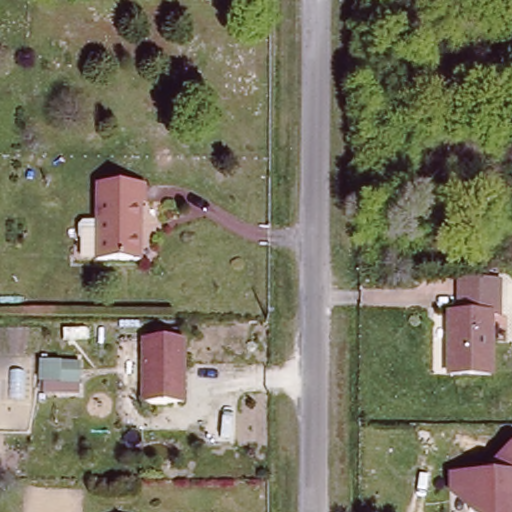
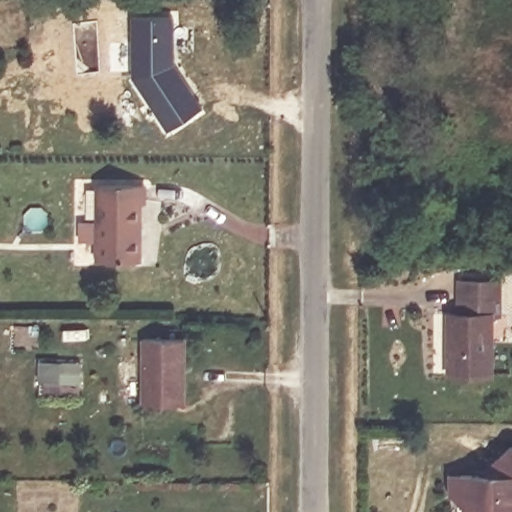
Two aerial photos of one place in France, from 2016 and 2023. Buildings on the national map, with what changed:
new [(131,77),(130,16),(173,18),(172,65),(202,108),(167,131),(131,77)]
new [(71,20),(97,20),(100,76),(74,76),(71,20)]
unchanged [(79,238),(80,223),(85,218),(97,218),(97,183),(145,183),(145,200),(138,200),(140,256),(97,257),(97,243),(85,243),(79,238)]
unchanged [(504,277),(503,311),(495,311),(495,370),(455,370),(455,311),(467,311),(467,277),(504,277)]
unchanged [(140,338),(183,340),(184,404),(139,404),(140,338)]
unchanged [(450,469),(496,471),(497,447),(512,447),(512,512),(466,512),(451,494),(450,469)]

